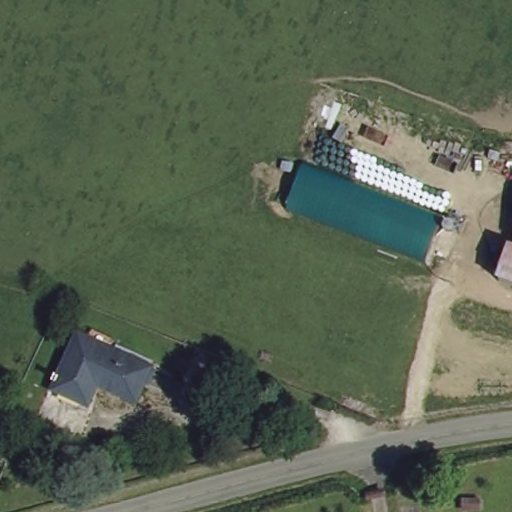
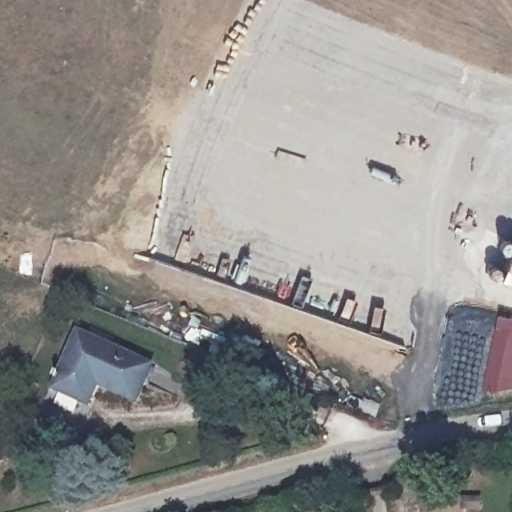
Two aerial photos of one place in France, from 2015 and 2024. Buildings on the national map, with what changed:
new [(283,209),(302,160),(442,212),(422,263),(283,209)]
unchanged [(502,277),(512,255),(512,281),(502,277)]
new [(497,317),(512,320),(512,391),(482,392),(497,317)]
unchanged [(77,331),(87,335),(89,330),(114,342),(110,350),(149,369),(133,400),(96,382),(83,408),(48,391),(77,331)]

